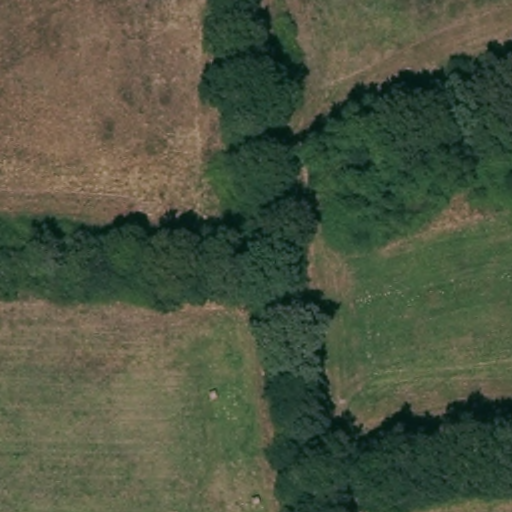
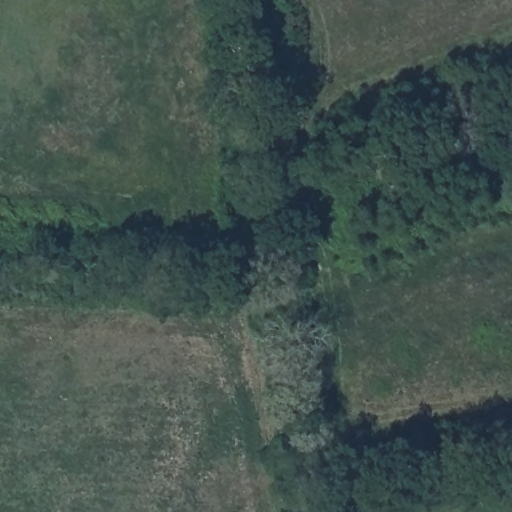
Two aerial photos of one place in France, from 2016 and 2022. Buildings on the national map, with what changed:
[]

